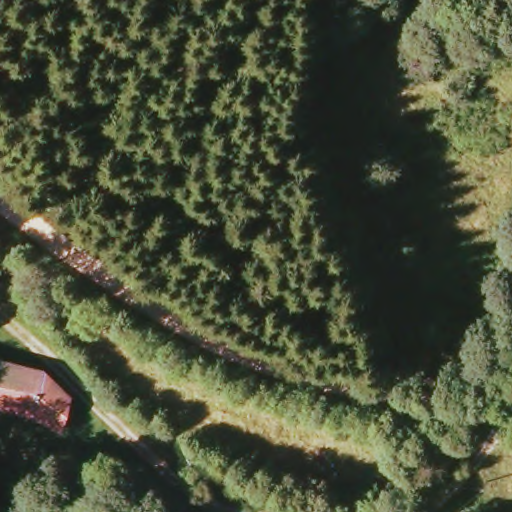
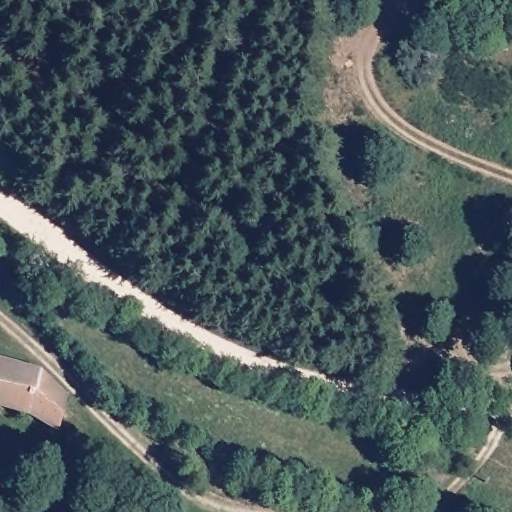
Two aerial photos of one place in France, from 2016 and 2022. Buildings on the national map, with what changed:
unchanged [(46,375),(34,418),(0,405),(0,358),(16,363),(46,375)]
unchanged [(73,401),(66,424),(64,434),(34,418),(46,375),(73,401)]

